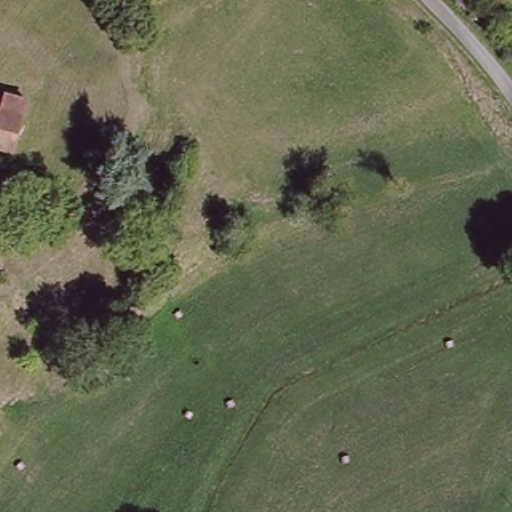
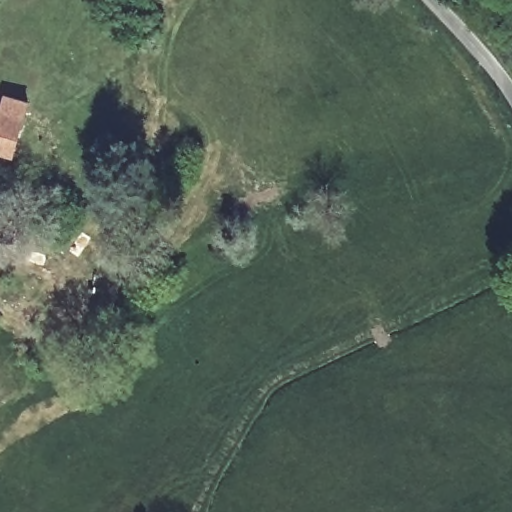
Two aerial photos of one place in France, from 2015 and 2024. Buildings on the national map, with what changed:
unchanged [(11,118),(16,103),(34,109),(15,163),(0,158),(0,115),(11,118)]

